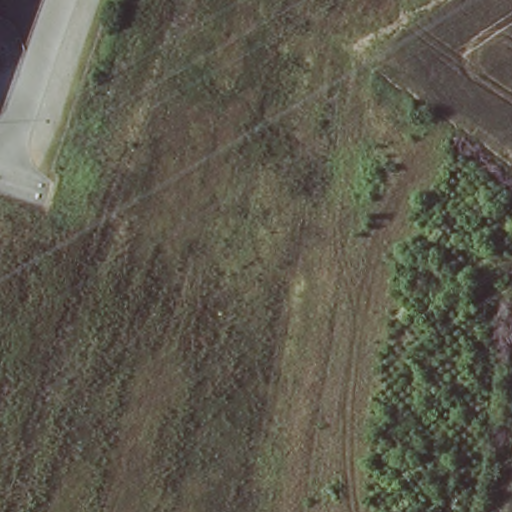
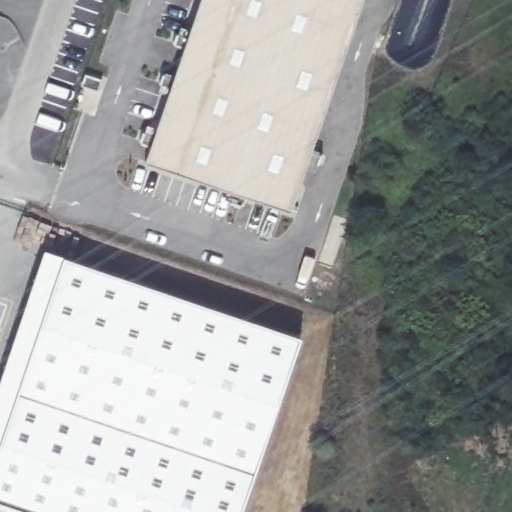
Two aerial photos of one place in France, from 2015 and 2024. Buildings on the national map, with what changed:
new [(148,161),(201,0),(364,0),(293,210),(148,161)]
new [(153,439),(21,390),(1,382),(46,250),(65,257),(199,302),(153,439)]
new [(153,439),(199,302),(303,337),(242,512),(0,512),(0,385),(1,382),(153,439)]

